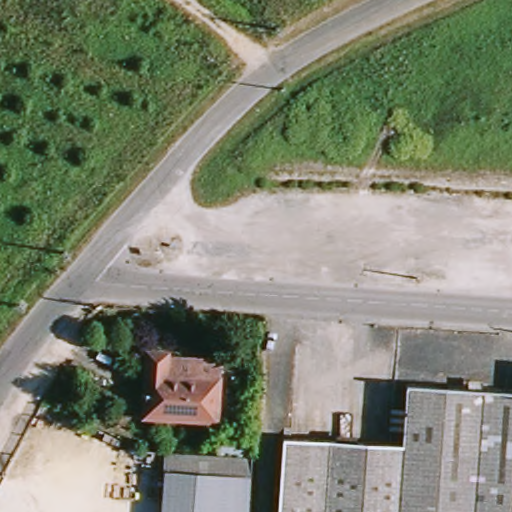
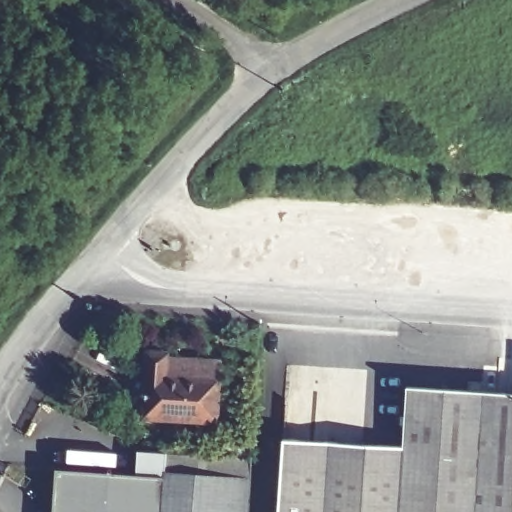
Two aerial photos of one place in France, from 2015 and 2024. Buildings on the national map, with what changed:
unchanged [(142,376),(143,353),(167,353),(167,377),(167,357),(222,359),(219,423),(211,423),(138,418),(142,376)]
unchanged [(402,448),(407,388),(512,396),(512,512),(278,512),(283,440),(402,448)]
new [(54,512),(57,467),(135,474),(137,451),(162,453),(158,512),(54,512)]
unchanged [(247,458),(244,512),(158,512),(162,453),(247,458)]

